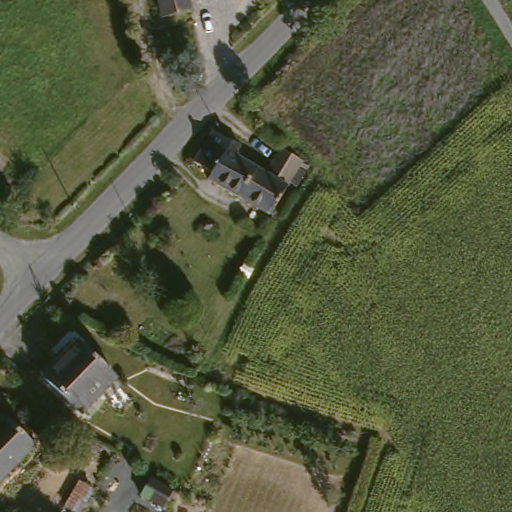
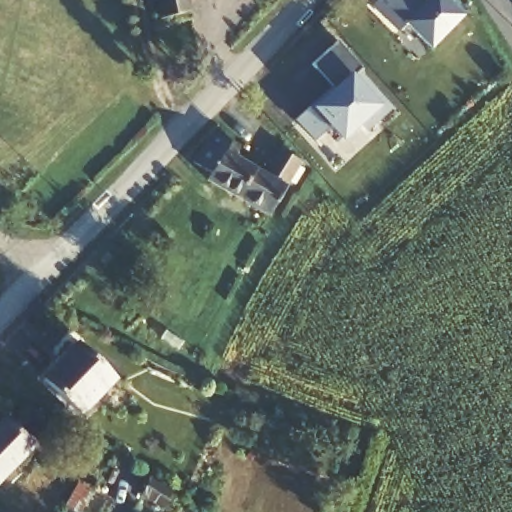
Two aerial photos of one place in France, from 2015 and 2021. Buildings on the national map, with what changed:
unchanged [(162,19),(157,0),(189,0),(192,12),(162,19)]
new [(417,0),(422,4),(425,0),(443,0),(460,16),(430,48),(404,23),(397,31),(371,6),(376,0),(417,0)]
new [(311,64),(337,40),(362,68),(359,71),(392,108),(368,129),(361,121),(342,137),(329,122),(311,138),(294,119),(312,102),(331,86),(311,64)]
unchanged [(280,149),(303,162),(288,187),(271,216),(208,180),(212,173),(194,163),(214,133),(235,143),(235,146),(240,150),(237,156),(265,174),(280,149)]
unchanged [(44,379),(78,342),(116,379),(81,416),(44,379)]
unchanged [(34,447),(0,482),(0,427),(6,420),(34,447)]
new [(163,481),(186,490),(179,509),(155,499),(163,481)]
unchanged [(94,491),(81,512),(74,512),(66,507),(80,482),(94,491)]

